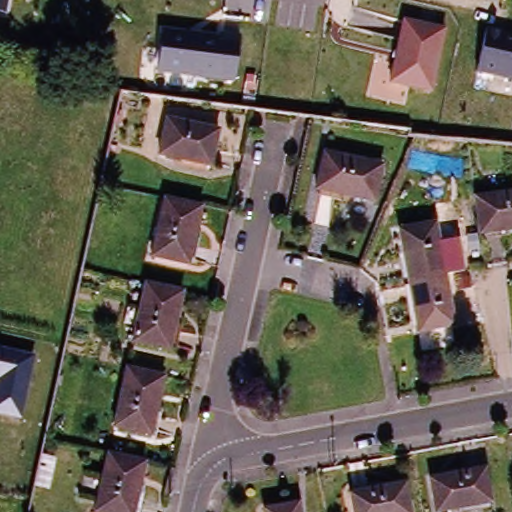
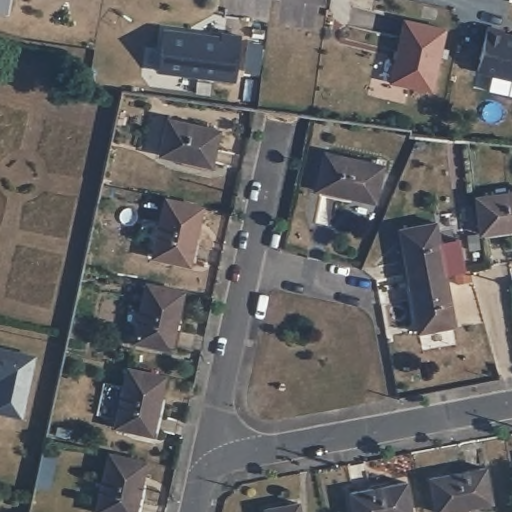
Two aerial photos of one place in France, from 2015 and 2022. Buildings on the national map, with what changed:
unchanged [(443,27),(430,84),(424,88),(389,80),(402,19),(443,27)]
unchanged [(501,33),(512,36),(512,78),(475,70),(485,26),(502,30),(501,33)]
unchanged [(179,35),(180,38),(190,40),(190,37),(216,41),(217,37),(235,40),(228,84),(152,73),(159,32),(179,35)]
unchanged [(207,163),(155,151),(162,117),(214,129),(207,163)]
unchanged [(374,200),(315,186),(324,150),(381,163),(374,200)]
unchanged [(512,225),(482,230),(475,194),(512,188),(512,225)]
unchanged [(153,254),(165,195),(202,204),(190,261),(153,254)]
unchanged [(430,220),(440,272),(405,279),(394,227),(430,220)]
unchanged [(449,323),(415,330),(405,279),(440,272),(449,323)]
unchanged [(134,340),(147,281),(183,290),(170,347),(134,340)]
unchanged [(0,414),(0,347),(34,355),(20,418),(0,414)]
unchanged [(110,430),(122,371),(160,380),(147,437),(110,430)]
unchanged [(109,451),(146,460),(134,512),(112,512),(97,508),(109,451)]
unchanged [(486,502),(432,512),(426,478),(480,468),(486,502)]
unchanged [(353,512),(349,493),(405,483),(410,512),(353,512)]
unchanged [(261,512),(260,509),(296,502),(298,512),(261,512)]

